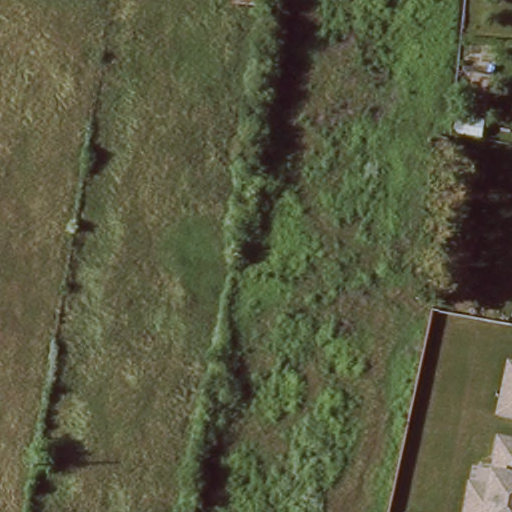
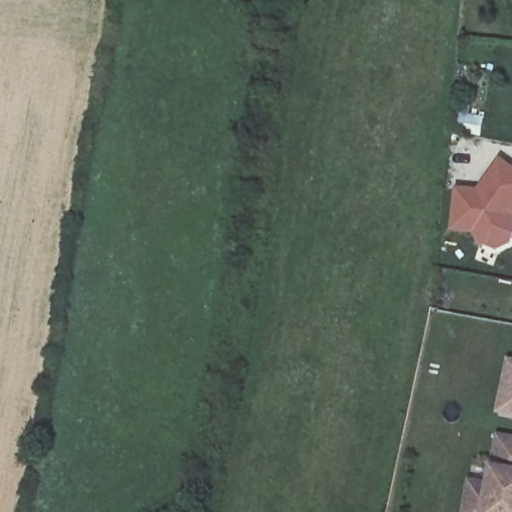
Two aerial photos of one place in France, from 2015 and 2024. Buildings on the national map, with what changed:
unchanged [(263,9),(230,9),(230,0),(264,0),(263,9)]
new [(508,243),(501,245),(497,246),(487,244),(484,243),(481,240),(476,231),(456,228),(460,191),(481,193),(502,162),(512,169),(512,240),(508,243)]
unchanged [(499,412),(512,359),(512,360),(512,415),(499,412)]
unchanged [(484,512),(498,433),(512,436),(512,512),(484,512)]

